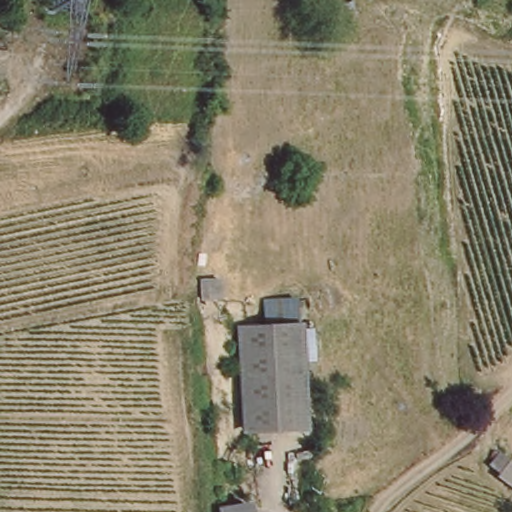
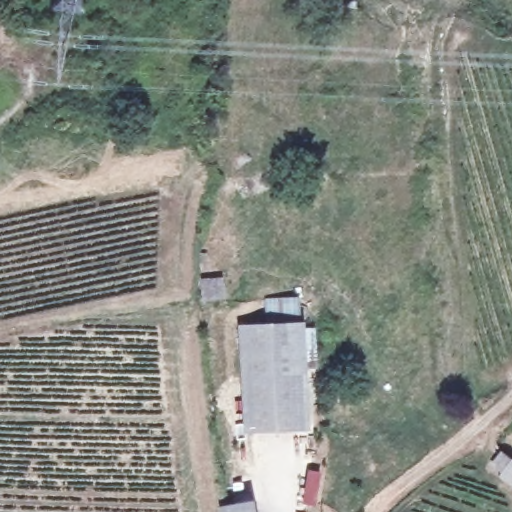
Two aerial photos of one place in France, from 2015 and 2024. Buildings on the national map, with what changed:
unchanged [(310,423),(243,422),(243,323),(303,320),(310,423)]
unchanged [(512,460),(512,485),(485,463),(495,447),(512,460)]
unchanged [(254,512),(218,512),(217,505),(252,496),(254,512)]

